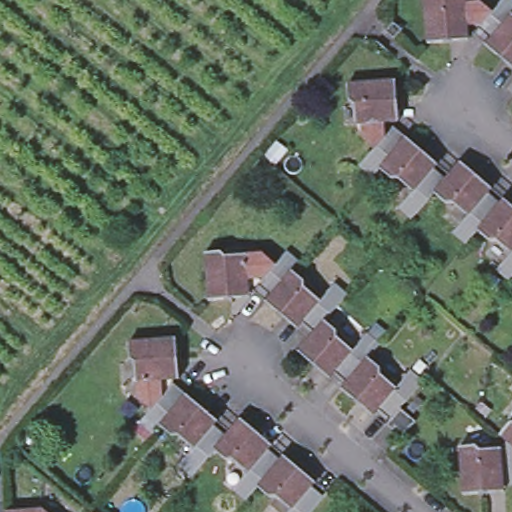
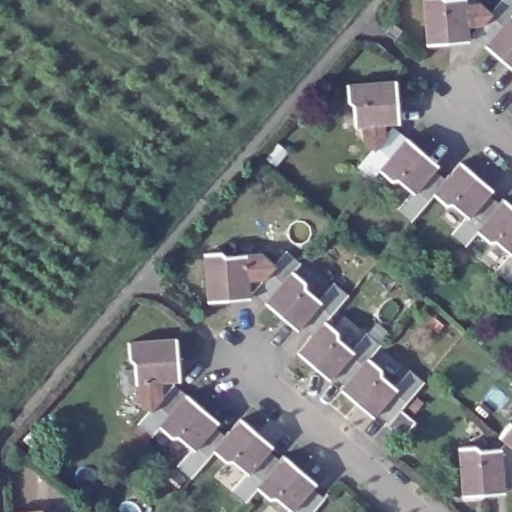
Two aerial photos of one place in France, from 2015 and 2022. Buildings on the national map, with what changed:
unchanged [(456,36),(454,40),(451,42),(429,43),(427,0),(448,0),(466,0),(467,5),(482,4),(493,13),(502,0),(511,0),(512,1),(512,17),(487,46),(474,35),(456,36)]
unchanged [(504,61),(487,46),(512,17),(512,59),(511,59),(504,61)]
unchanged [(396,41),(388,34),(396,24),(404,31),(396,41)]
unchanged [(360,172),(374,155),(363,144),(362,131),(356,131),(355,111),(350,108),(349,91),(397,89),(398,109),(397,111),(393,114),(394,132),(407,144),(380,176),(374,183),(360,172)]
unchanged [(426,160),(424,166),(447,185),(435,199),(413,225),(399,213),(413,196),(399,185),(391,185),(380,176),(407,144),(426,160)]
unchanged [(479,182),(478,190),(501,210),(478,236),(467,250),(452,237),(467,220),(454,209),(447,209),(435,199),(447,185),(461,168),(479,182)]
unchanged [(494,273),(509,256),(494,244),(488,244),(478,236),(501,210),(505,205),(512,211),(512,284),(510,287),(494,273)]
unchanged [(274,273),(288,256),(301,267),(295,275),(268,307),(254,296),(238,298),(234,302),(211,304),(208,257),(223,256),(227,261),(248,260),(248,265),(264,265),(274,273)]
unchanged [(306,285),(306,292),(322,304),(334,288),(349,299),(326,326),(314,340),(293,322),(286,322),(268,307),(295,275),(306,285)]
unchanged [(338,335),(339,344),(352,355),(366,337),(381,349),(369,363),(346,391),(322,370),(316,372),(299,358),(314,340),(326,326),(338,335)]
unchanged [(141,425),(156,407),(145,397),(144,383),(136,383),(135,363),(131,360),(129,345),(178,341),(178,357),(178,367),(173,371),(174,384),(188,395),(160,428),(154,435),(141,425)]
unchanged [(406,436),(398,430),(395,434),(389,428),(389,427),(364,405),(359,408),(343,395),(346,391),(369,363),(378,370),(378,376),(394,390),(407,374),(424,388),(403,411),(401,414),(414,426),(406,436)]
unchanged [(206,412),(206,420),(227,438),(215,452),(193,478),(179,466),(193,449),(180,438),(171,437),(160,428),(188,395),(206,412)]
unchanged [(260,436),(259,443),(281,461),(258,488),(246,501),(233,490),(248,473),(234,461),(228,462),(215,452),(227,438),(242,420),(260,436)]
unchanged [(502,437),(512,425),(512,446),(509,443),(502,437)]
unchanged [(512,486),(492,487),(486,494),(467,495),(463,448),(480,446),(484,451),(502,450),(509,443),(512,446),(512,486)]
unchanged [(301,478),(325,498),(313,512),(287,512),(290,508),(276,497),(271,498),(258,488),(281,461),(285,456),(302,471),(301,478)]
unchanged [(43,511),(45,512),(31,512),(43,511)]

